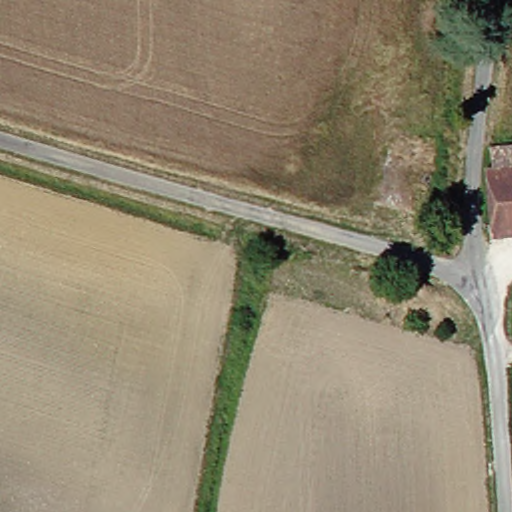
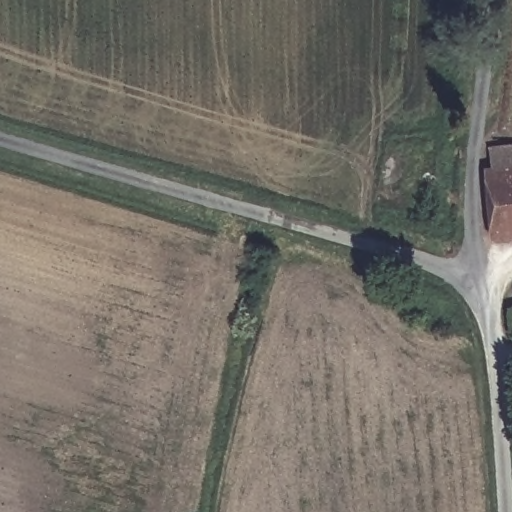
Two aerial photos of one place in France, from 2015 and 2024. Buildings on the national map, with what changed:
unchanged [(482,174),(484,150),(512,148),(512,255),(489,257),(482,174)]

